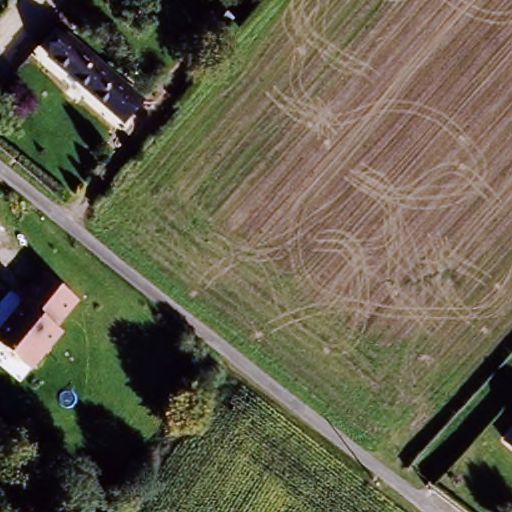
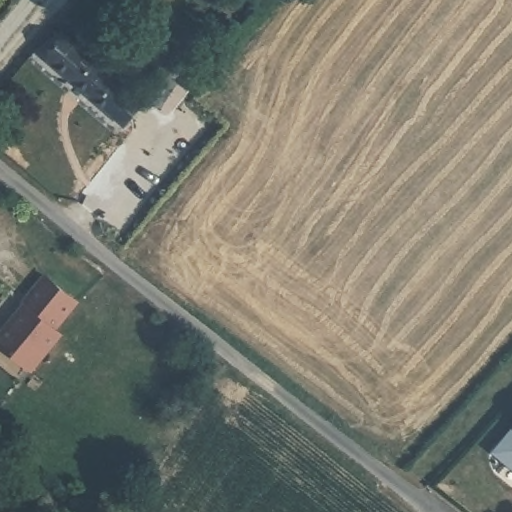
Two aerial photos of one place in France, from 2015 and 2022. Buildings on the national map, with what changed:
unchanged [(68,40),(145,102),(127,125),(51,61),(68,40)]
unchanged [(14,301),(38,272),(70,298),(48,325),(53,330),(25,365),(0,345),(0,324),(17,302),(14,301)]
new [(509,438),(512,441),(512,469),(492,451),(512,428),(512,435),(509,438)]
unchanged [(512,435),(512,441),(509,438),(512,435)]

